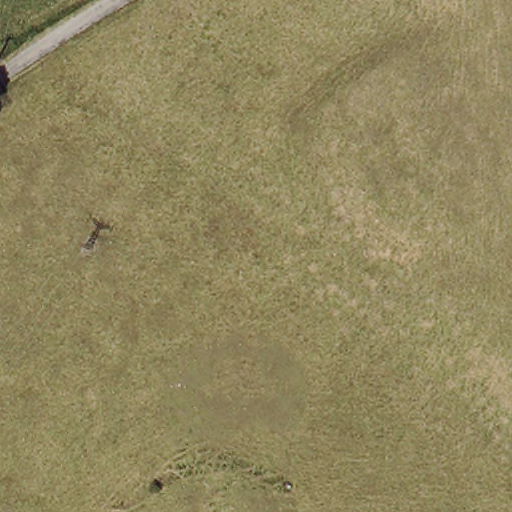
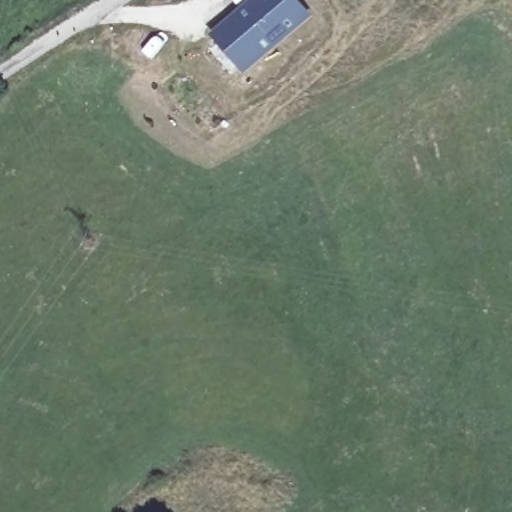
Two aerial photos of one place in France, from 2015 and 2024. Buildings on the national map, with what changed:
new [(257,0),(292,0),(305,15),(244,67),(215,34),(257,0)]

